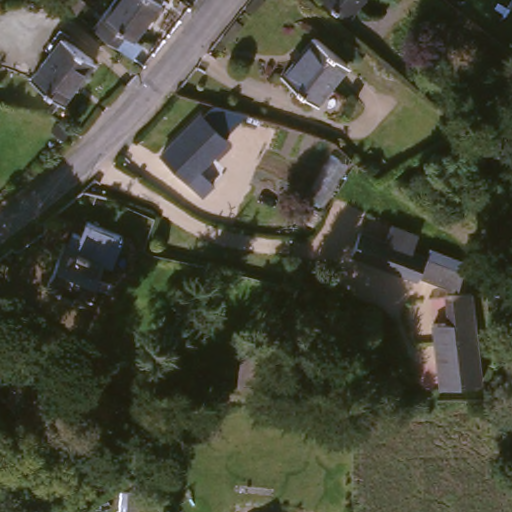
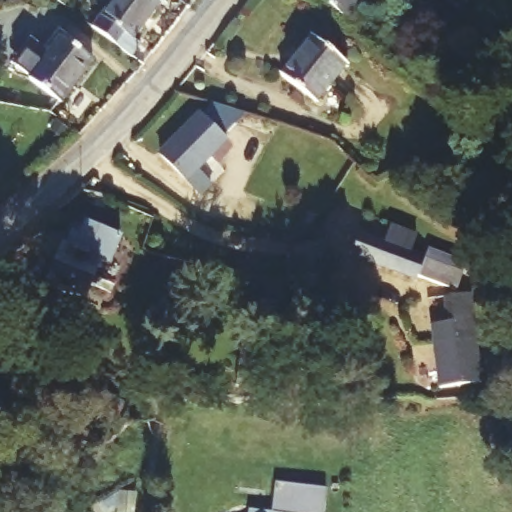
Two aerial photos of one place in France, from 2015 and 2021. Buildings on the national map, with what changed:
unchanged [(68,0),(79,0),(92,11),(81,24),(60,8),(68,0)]
unchanged [(131,32),(123,43),(106,31),(133,0),(162,0),(166,3),(138,35),(131,32)]
unchanged [(323,0),(371,0),(351,23),(323,0)]
unchanged [(58,107),(24,77),(61,39),(94,67),(58,107)]
unchanged [(284,79),(316,41),(349,69),(318,105),(284,79)]
unchanged [(214,182),(203,195),(161,157),(199,112),(226,136),(199,169),(214,182)]
unchanged [(36,279),(61,242),(64,244),(72,233),(79,237),(87,225),(88,224),(119,246),(103,271),(101,270),(94,266),(69,302),(36,279)]
unchanged [(473,263),(469,273),(463,290),(424,276),(423,279),(358,255),(365,233),(391,243),(396,226),(423,236),(417,252),(431,258),(434,249),(473,263)]
unchanged [(456,322),(453,296),(476,293),(487,383),(446,388),(438,324),(456,322)]
unchanged [(230,386),(239,348),(274,353),(266,393),(230,386)]
unchanged [(1,360),(0,362),(0,357),(1,360)]
new [(273,512),(276,483),(326,488),(324,512),(273,512)]
new [(273,512),(248,512),(248,509),(273,512)]

